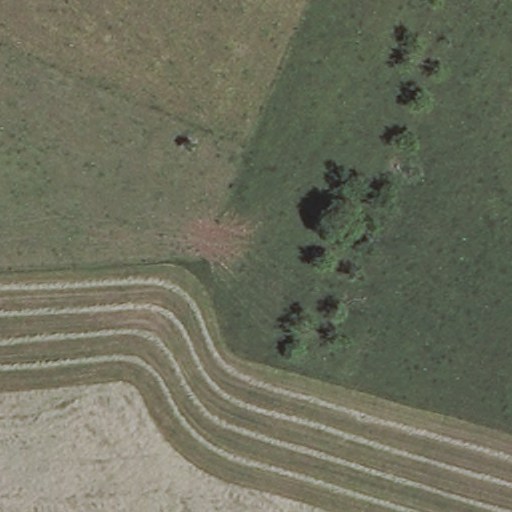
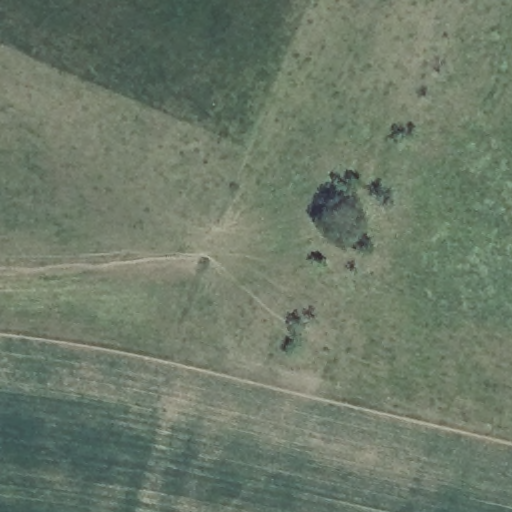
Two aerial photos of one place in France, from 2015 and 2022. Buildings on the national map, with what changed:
unchanged [(350,276),(344,291),(314,281),(320,263),(350,276)]

